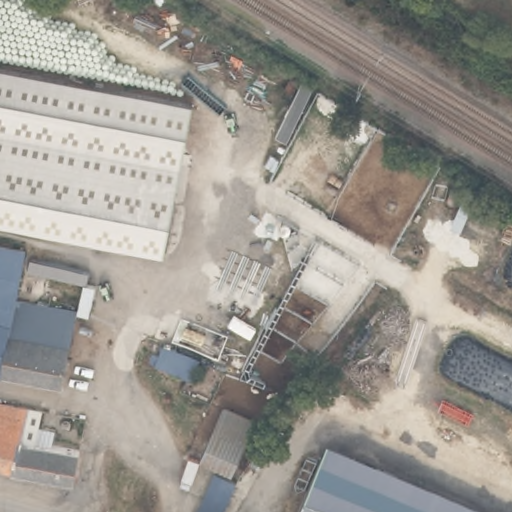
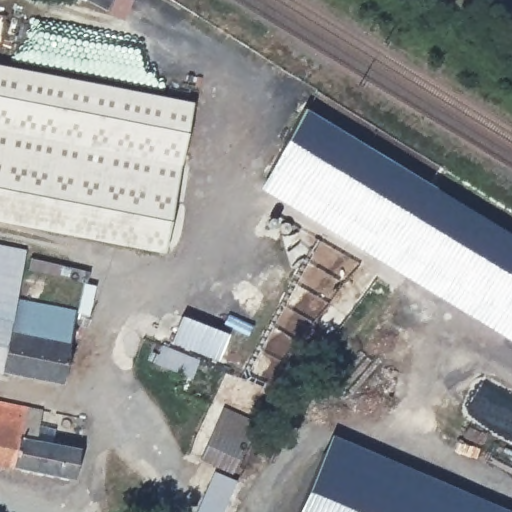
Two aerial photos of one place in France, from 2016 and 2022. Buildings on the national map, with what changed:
unchanged [(165,245),(0,216),(0,63),(191,97),(165,245)]
new [(512,234),(512,341),(260,188),(304,107),(512,234)]
unchanged [(64,388),(1,376),(9,327),(0,325),(0,250),(25,254),(16,304),(77,315),(64,388)]
new [(217,360),(170,341),(181,314),(230,333),(217,360)]
unchanged [(0,325),(9,327),(1,376),(0,376),(0,325)]
unchanged [(162,356),(165,351),(199,365),(192,381),(149,364),(153,353),(162,356)]
unchanged [(36,428),(54,431),(51,447),(77,451),(72,482),(0,469),(0,406),(38,412),(36,428)]
unchanged [(223,406),(255,420),(232,469),(201,456),(223,406)]
unchanged [(462,512),(300,512),(325,453),(462,512)]
unchanged [(237,478),(222,512),(197,512),(217,468),(237,478)]

